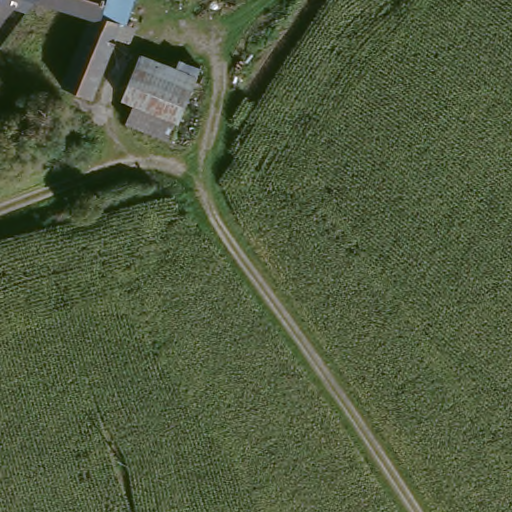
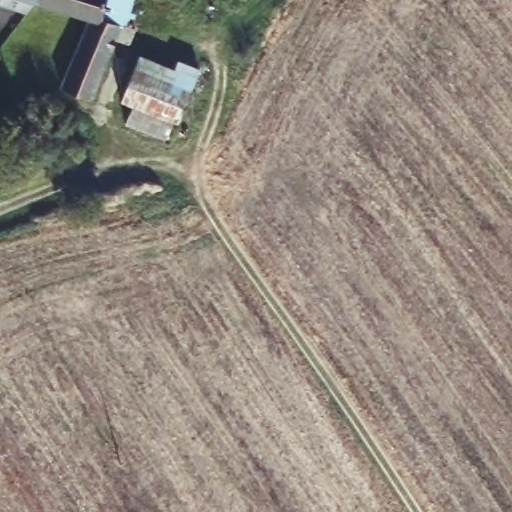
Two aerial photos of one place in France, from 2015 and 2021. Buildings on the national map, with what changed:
unchanged [(27,12),(0,4),(0,0),(37,0),(27,12)]
unchanged [(128,20),(136,22),(131,39),(119,35),(94,96),(63,81),(90,14),(45,0),(133,0),(128,20)]
unchanged [(195,83),(179,132),(134,116),(140,98),(128,93),(140,62),(195,83)]

